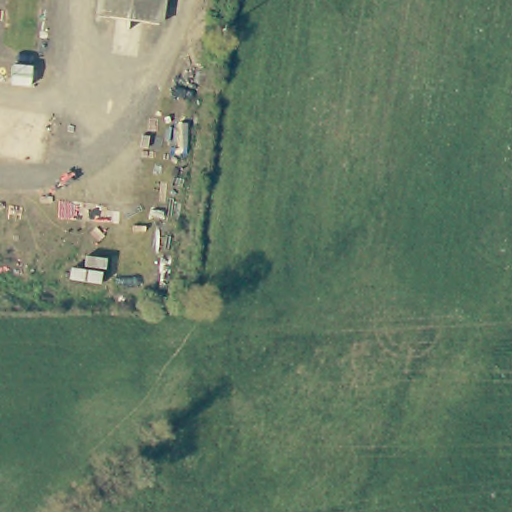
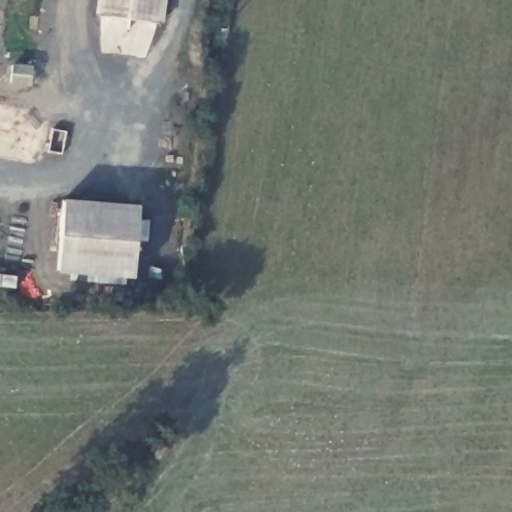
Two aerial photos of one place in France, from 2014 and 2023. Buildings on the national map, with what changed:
unchanged [(102,14),(104,0),(166,0),(162,24),(102,14)]
new [(139,205),(132,279),(57,274),(63,199),(139,205)]

